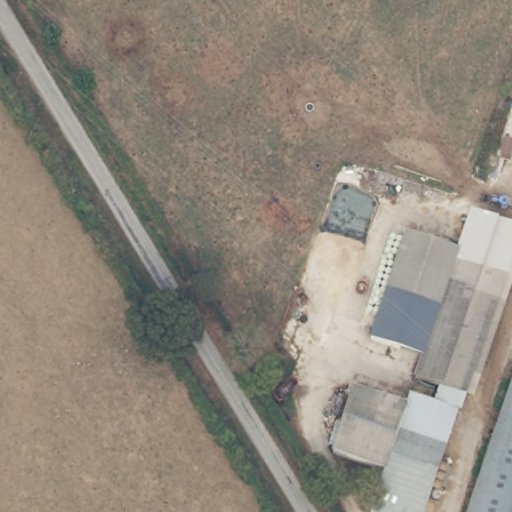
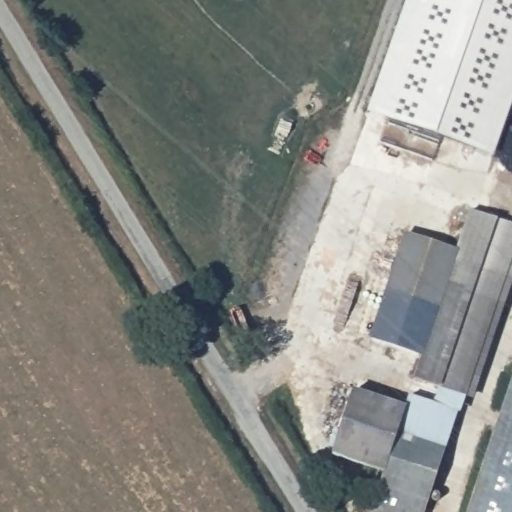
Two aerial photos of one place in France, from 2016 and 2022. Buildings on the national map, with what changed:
new [(512,104),(494,155),(366,113),(406,0),(512,0),(512,104)]
unchanged [(464,248),(457,246),(470,210),(512,223),(512,260),(466,244),(464,248)]
unchanged [(466,244),(512,260),(512,296),(480,390),(423,369),(430,347),(380,331),(414,230),(464,248),(466,244)]
unchanged [(388,512),(369,506),(382,465),(331,446),(353,382),(407,401),(411,388),(458,405),(422,512),(388,512)]
unchanged [(512,512),(475,512),(512,398),(512,512)]

